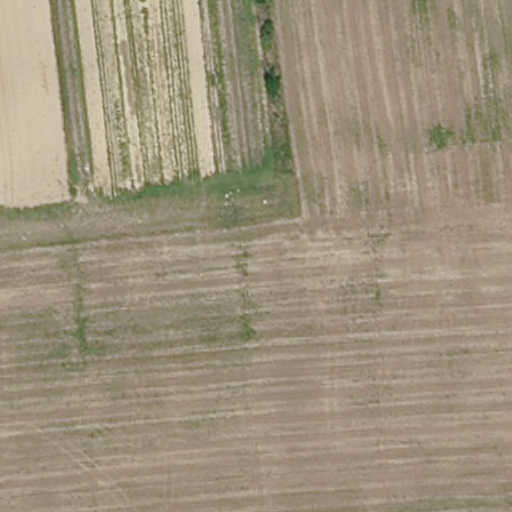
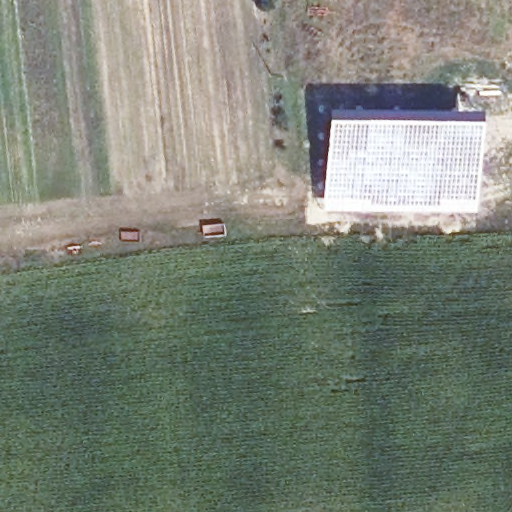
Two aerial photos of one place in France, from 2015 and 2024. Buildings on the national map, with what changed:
new [(318,107),(333,107),(333,110),(338,111),(338,115),(427,115),(427,108),(470,110),(469,211),(318,210),(318,107)]

